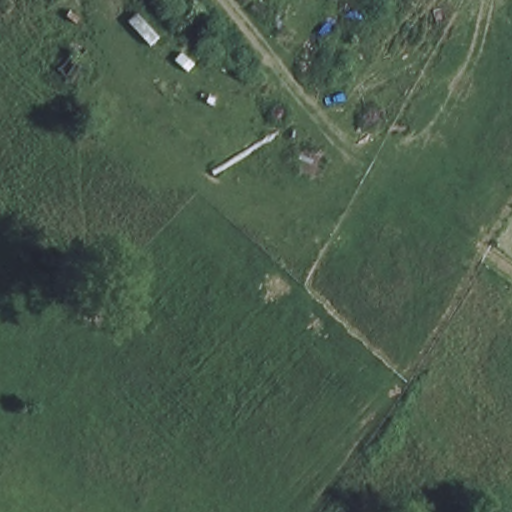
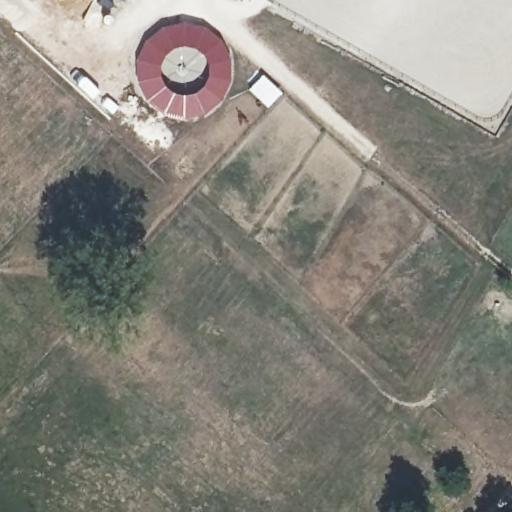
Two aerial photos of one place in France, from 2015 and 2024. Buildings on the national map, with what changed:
new [(229,79),(219,99),(203,112),(182,118),(160,113),(144,99),(134,79),(133,58),(142,38),(160,25),(182,22),(202,27),(218,40),(227,58),(229,79)]

